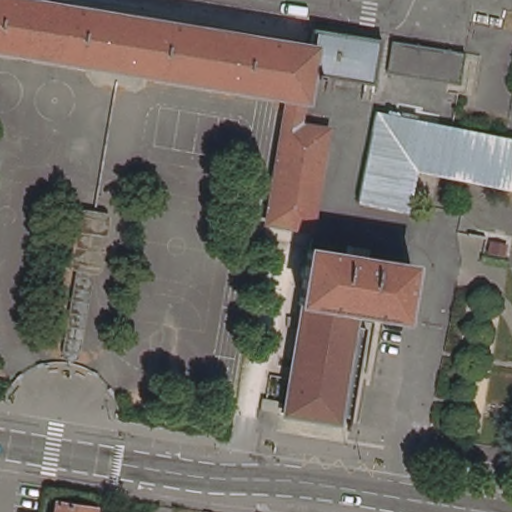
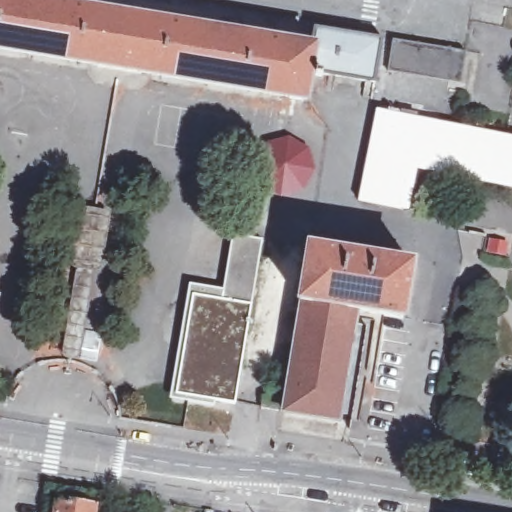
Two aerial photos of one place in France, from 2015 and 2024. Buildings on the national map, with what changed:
unchanged [(315,26),(384,38),(376,84),(325,75),(324,77),(312,75),(307,100),(305,100),(303,109),(300,123),(329,129),(312,227),(312,229),(267,221),(288,97),(0,49),(0,0),(47,0),(311,44),(315,26)]
unchanged [(462,84),(387,72),(394,39),(467,51),(462,84)]
unchanged [(415,165),(407,209),(389,205),(361,200),(379,110),(512,137),(512,184),(415,165)]
unchanged [(77,253),(74,227),(85,206),(102,209),(107,233),(95,256),(77,253)]
new [(170,400),(190,286),(224,290),(232,234),(262,239),(250,306),(234,405),(214,402),(214,408),(170,400)]
unchanged [(352,258),(364,260),(364,258),(409,265),(400,320),(354,312),(352,325),(365,327),(350,417),(337,415),(337,422),(282,412),(300,303),(297,302),(305,248),(352,256),(352,258)]
unchanged [(75,262),(85,257),(94,264),(80,344),(70,349),(62,340),(75,262)]
unchanged [(260,397),(280,400),(279,411),(259,408),(260,397)]
unchanged [(96,508),(95,512),(56,512),(57,502),(96,508)]

